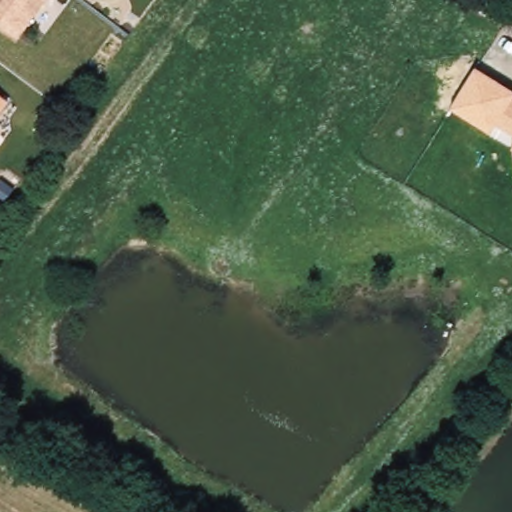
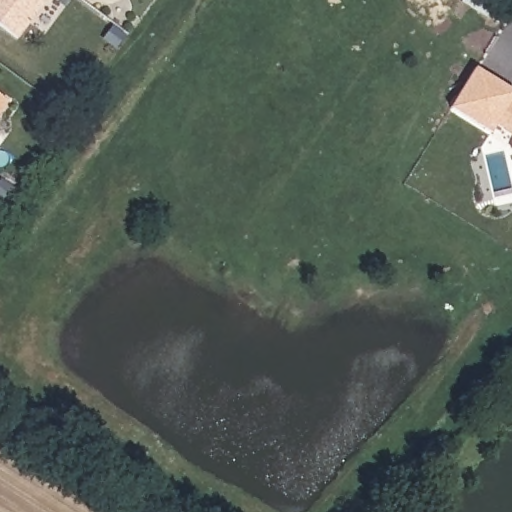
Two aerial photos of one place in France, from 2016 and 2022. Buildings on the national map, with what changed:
unchanged [(0,25),(0,0),(47,0),(18,37),(0,25)]
unchanged [(492,133),(450,108),(477,67),(512,89),(512,101),(498,126),(492,133)]
unchanged [(0,96),(8,102),(0,112),(0,96)]
unchanged [(498,126),(512,101),(512,132),(498,126)]

